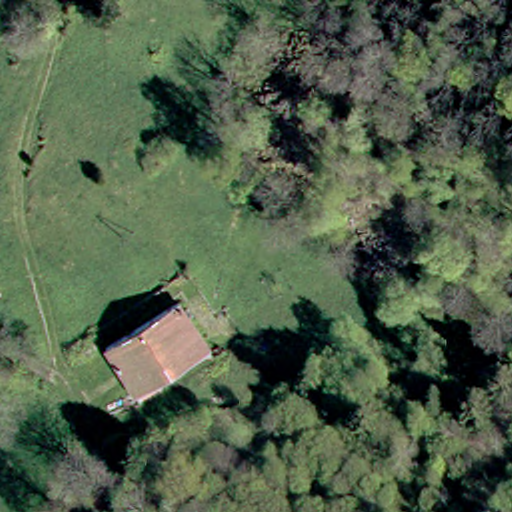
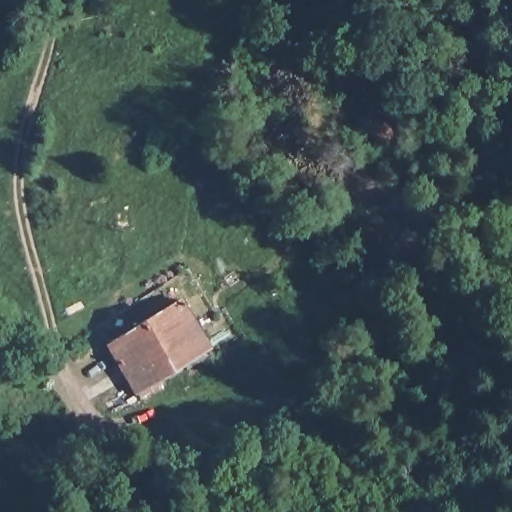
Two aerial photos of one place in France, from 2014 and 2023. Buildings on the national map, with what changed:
unchanged [(168,300),(180,321),(199,353),(142,389),(129,395),(105,358),(96,345),(168,300)]

